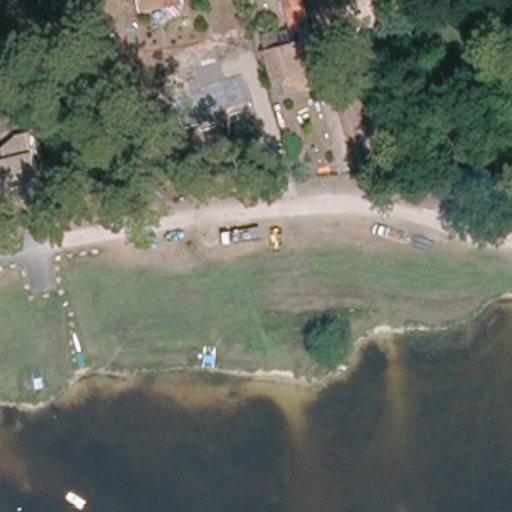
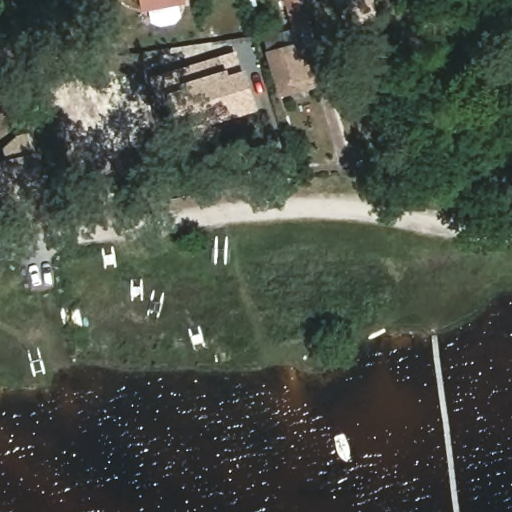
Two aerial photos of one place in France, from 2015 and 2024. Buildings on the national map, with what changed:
unchanged [(124,4),(123,0),(139,0),(124,4)]
unchanged [(309,24),(293,29),(284,0),(301,0),(309,24)]
unchanged [(362,10),(333,19),(327,0),(358,0),(362,10)]
unchanged [(299,86),(280,91),(263,35),(274,31),(279,47),(301,41),(310,69),(314,81),(299,86)]
new [(190,130),(188,123),(180,96),(197,91),(194,81),(191,71),(201,68),(228,60),(235,79),(252,74),(260,100),(263,108),(190,130)]
unchanged [(40,120),(41,125),(36,126),(35,122),(36,121),(40,120)]
unchanged [(8,185),(0,186),(0,153),(20,135),(38,130),(45,158),(48,175),(51,183),(11,194),(8,185)]

